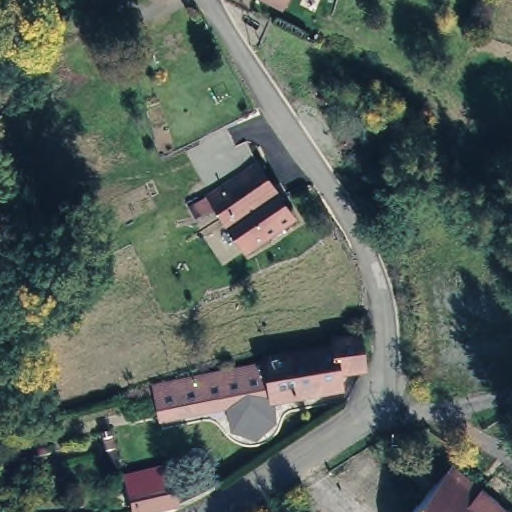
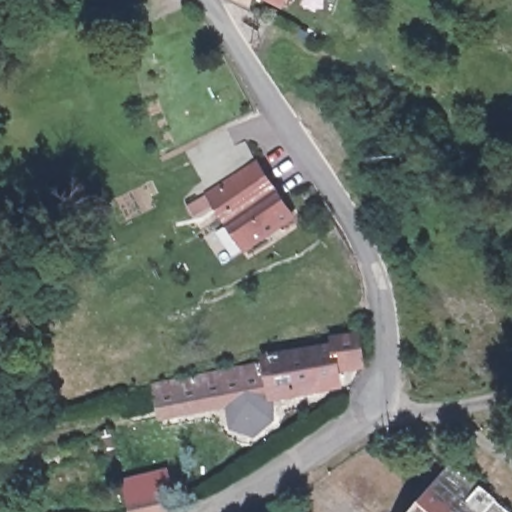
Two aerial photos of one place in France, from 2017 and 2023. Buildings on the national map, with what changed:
unchanged [(261,27),(258,32),(241,24),(246,17),(261,27)]
unchanged [(298,212),(250,245),(216,190),(261,157),(298,212)]
unchanged [(263,360),(263,348),(311,341),(309,328),(361,321),(374,367),(339,377),(338,387),(269,397),(274,425),(247,433),(221,422),(218,408),(154,416),(146,375),(263,360)]
unchanged [(16,452),(20,466),(0,471),(0,469),(0,457),(16,452)]
unchanged [(510,512),(408,512),(450,463),(510,512)]
unchanged [(154,512),(136,512),(133,491),(176,481),(178,508),(154,512)]

